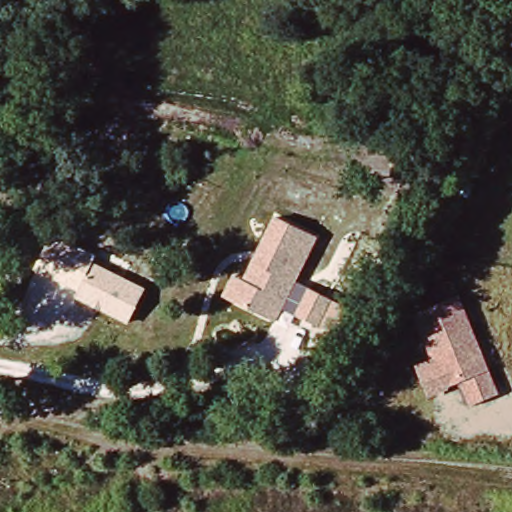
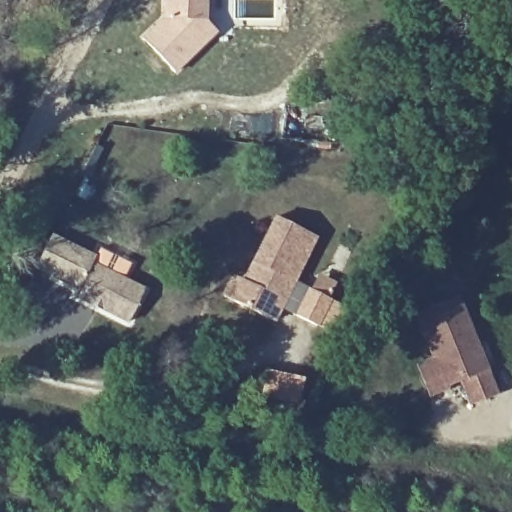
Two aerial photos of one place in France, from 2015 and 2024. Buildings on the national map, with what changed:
new [(165,0),(205,0),(205,18),(205,20),(216,31),(174,73),(143,40),(165,18),(165,0)]
unchanged [(317,236),(276,323),(221,297),(233,274),(242,278),(271,217),(317,236)]
unchanged [(145,288),(127,325),(73,299),(91,260),(145,288)]
unchanged [(331,297),(319,326),(292,314),(306,287),(331,297)]
unchanged [(498,391),(469,404),(460,381),(427,396),(415,364),(431,357),(414,314),(461,294),(498,391)]

